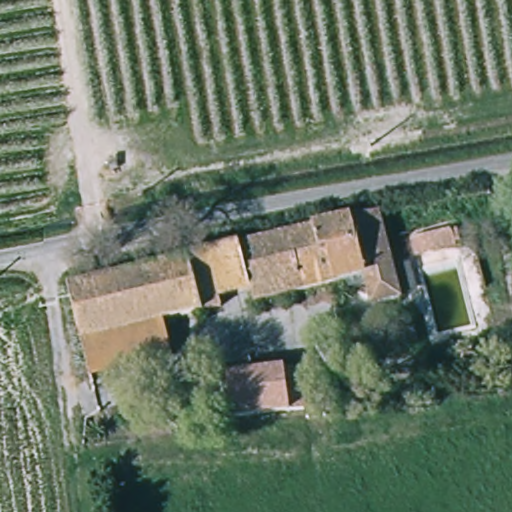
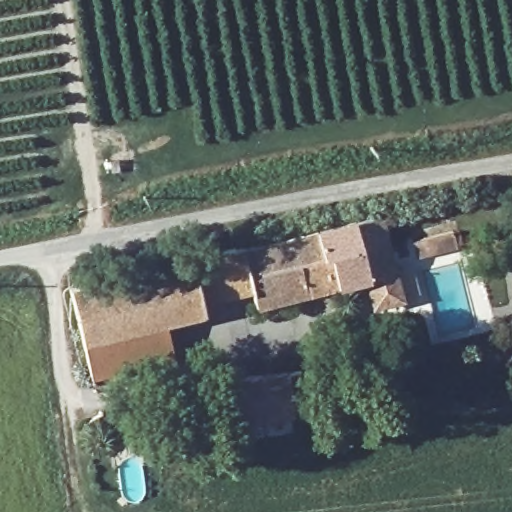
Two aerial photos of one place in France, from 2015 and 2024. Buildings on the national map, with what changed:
unchanged [(121,171),(108,173),(106,161),(119,160),(121,171)]
unchanged [(68,284),(380,210),(401,295),(370,302),(361,274),(253,302),(250,287),(219,295),(222,306),(162,320),(81,338),(68,284)]
unchanged [(451,232),(455,248),(416,257),(413,242),(451,232)]
unchanged [(171,353),(88,374),(81,338),(162,320),(171,353)]
unchanged [(289,372),(294,410),(223,421),(217,383),(289,372)]

